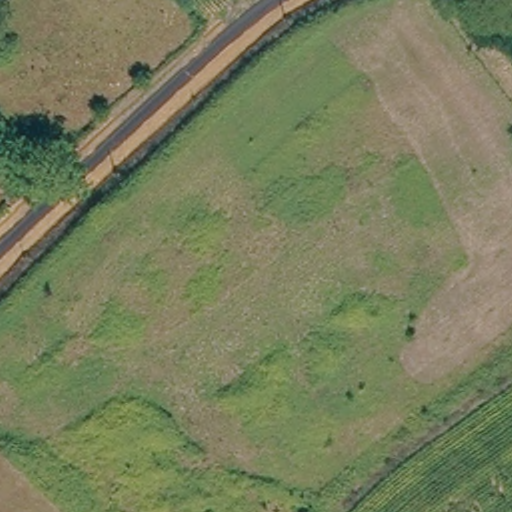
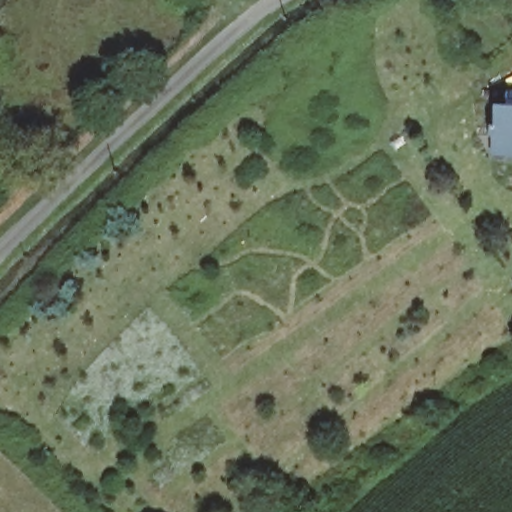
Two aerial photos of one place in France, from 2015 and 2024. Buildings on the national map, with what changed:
new [(497,106),(512,107),(512,158),(494,156),(497,106)]

